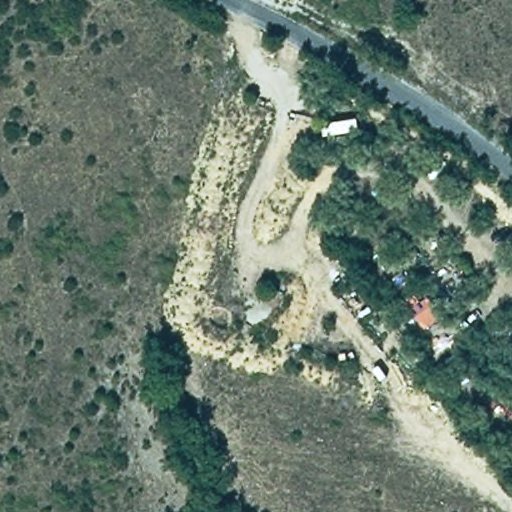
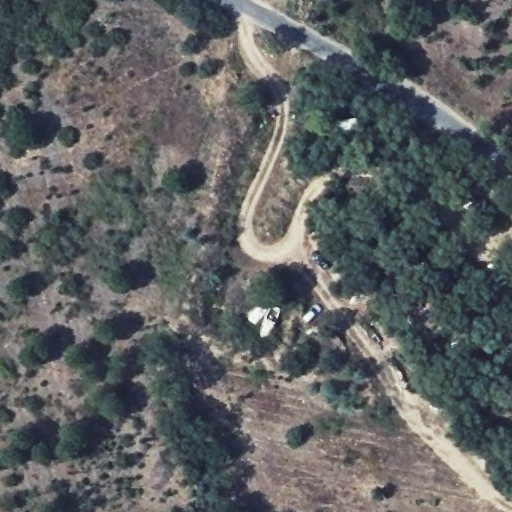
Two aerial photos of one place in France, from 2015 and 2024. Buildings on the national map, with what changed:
unchanged [(444,322),(422,335),(408,311),(429,298),(444,322)]

